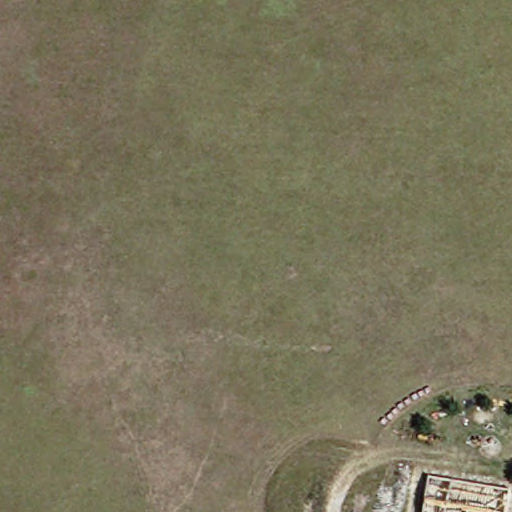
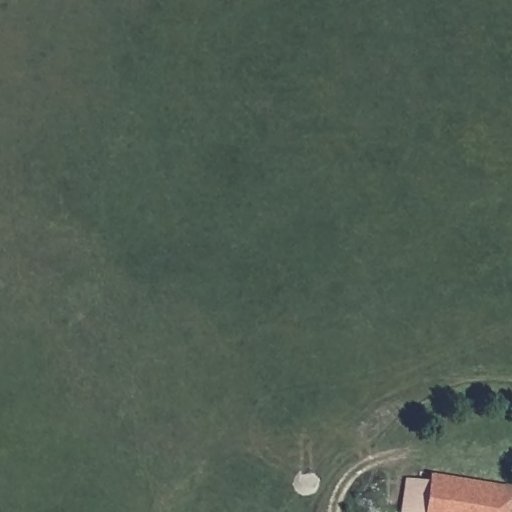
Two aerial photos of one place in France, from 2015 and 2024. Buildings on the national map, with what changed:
new [(431,476),(512,488),(508,512),(425,512),(431,476)]

